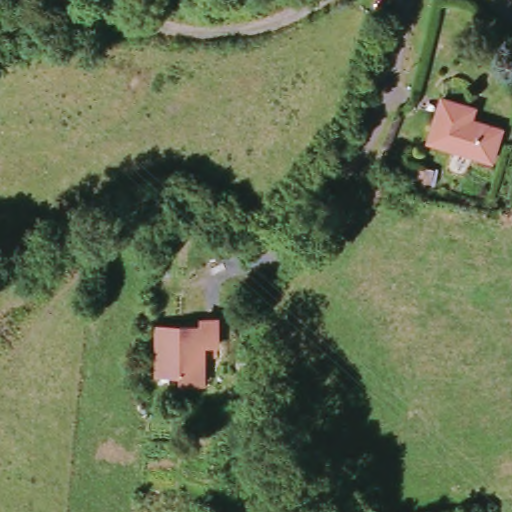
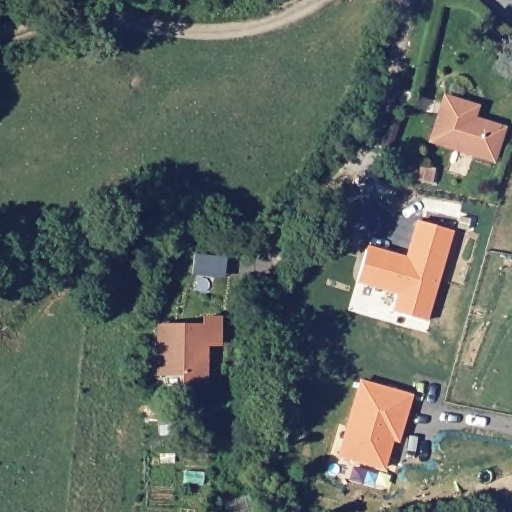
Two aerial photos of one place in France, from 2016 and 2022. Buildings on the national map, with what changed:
unchanged [(477,119),(506,126),(499,154),(436,140),(444,102),(445,99),(478,106),(477,110),(477,119)]
new [(405,257),(416,221),(452,231),(428,321),(392,311),(398,294),(356,283),(367,246),(405,257)]
unchanged [(208,323),(209,385),(181,383),(182,375),(158,378),(158,322),(208,323)]
new [(361,383),(409,396),(404,418),(398,416),(383,468),(340,456),(361,383)]

